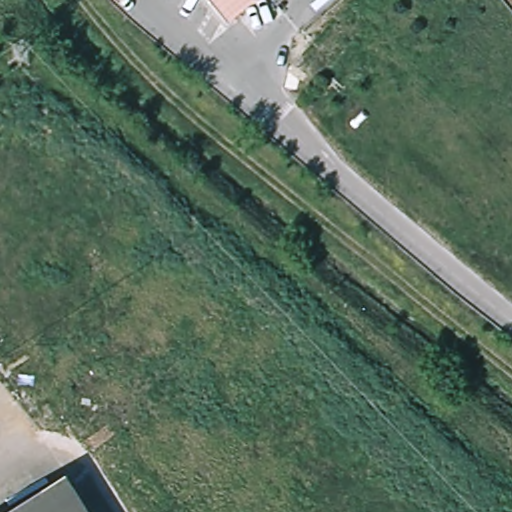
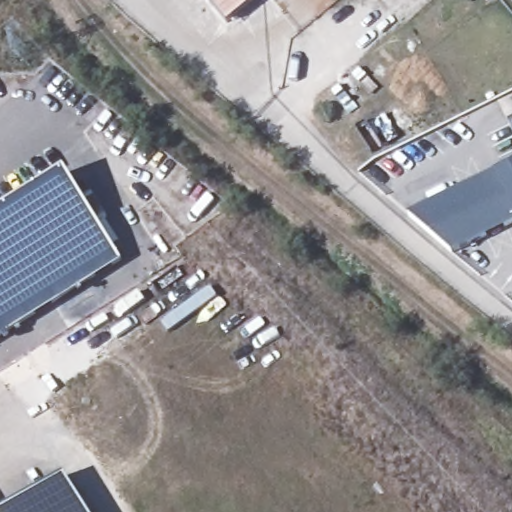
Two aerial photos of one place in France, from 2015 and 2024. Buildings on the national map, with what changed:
unchanged [(231,27),(210,0),(264,0),(231,27)]
new [(512,123),(512,128),(510,124),(512,123)]
new [(408,217),(512,167),(512,224),(453,252),(408,217)]
new [(67,174),(121,262),(0,338),(0,215),(67,174)]
unchanged [(5,512),(62,476),(85,512),(5,512)]

